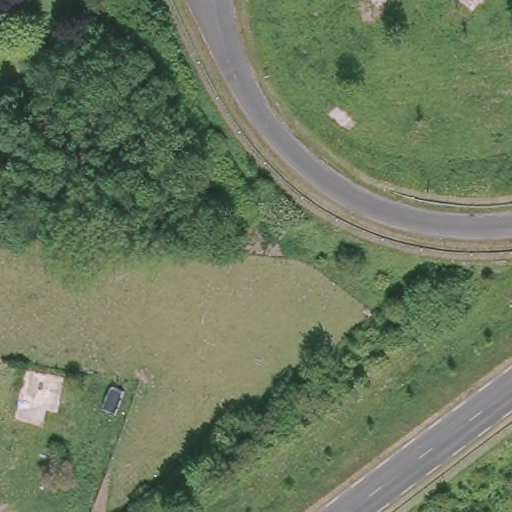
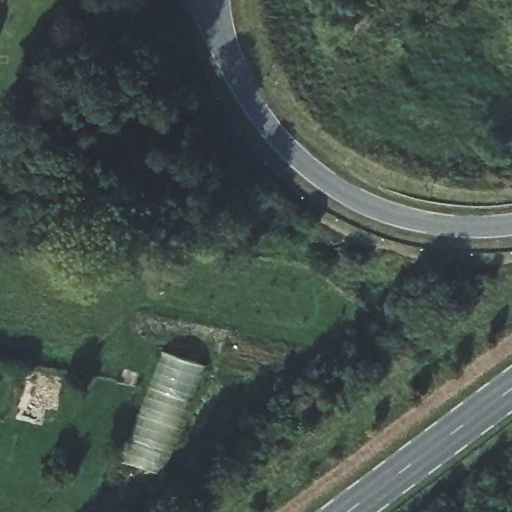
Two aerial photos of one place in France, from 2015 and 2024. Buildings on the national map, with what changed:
new [(155,383),(198,401),(168,480),(124,460),(155,383)]

